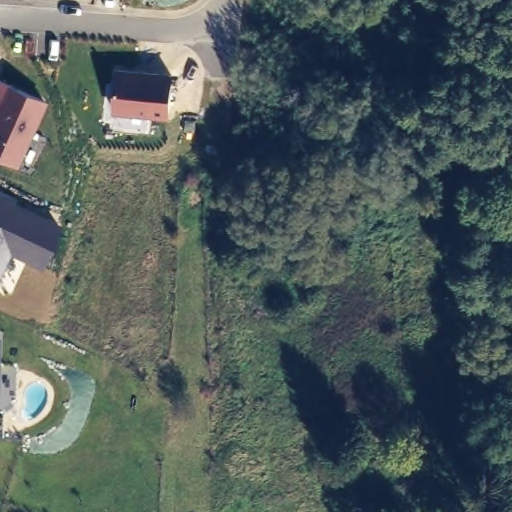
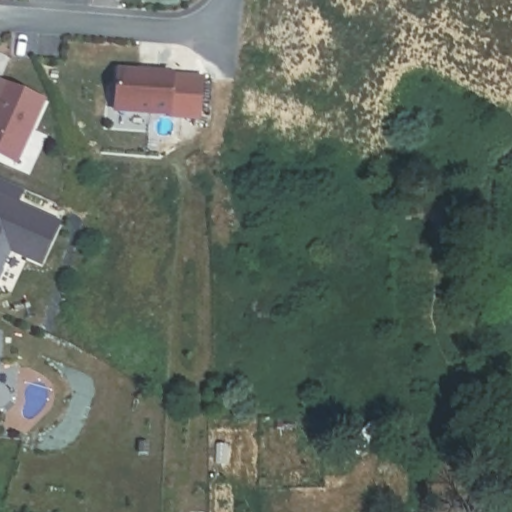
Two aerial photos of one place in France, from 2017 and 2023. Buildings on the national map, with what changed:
unchanged [(174,116),(114,112),(117,67),(177,71),(174,116)]
unchanged [(46,100),(19,163),(0,156),(0,80),(46,100)]
unchanged [(43,265),(10,252),(0,273),(0,193),(61,220),(43,265)]

